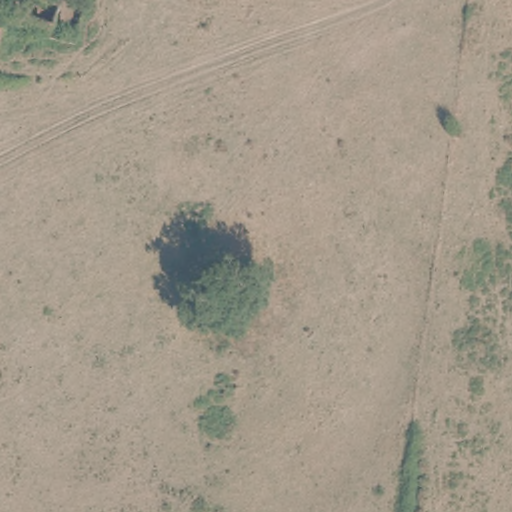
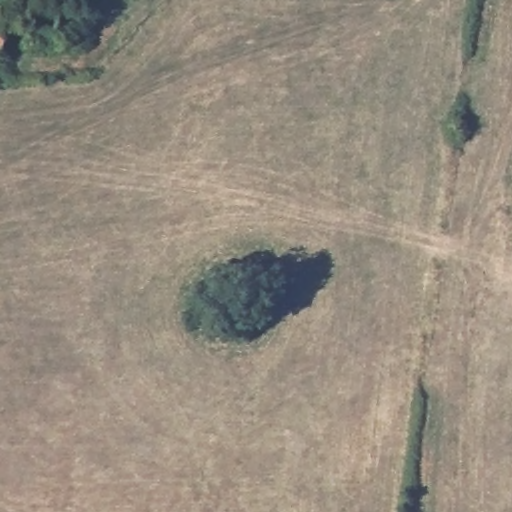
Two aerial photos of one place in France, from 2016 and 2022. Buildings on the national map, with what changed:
unchanged [(60,10),(54,32),(9,19),(11,7),(13,0),(36,0),(36,3),(60,10)]
unchanged [(0,49),(0,17),(9,19),(0,49)]

